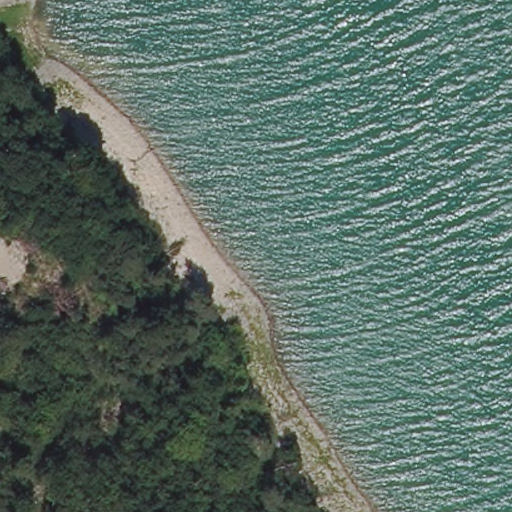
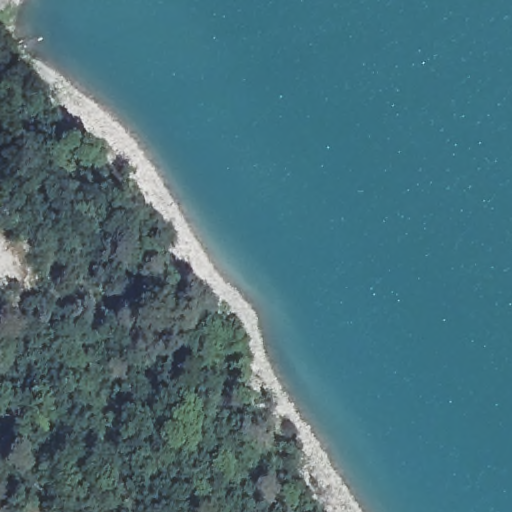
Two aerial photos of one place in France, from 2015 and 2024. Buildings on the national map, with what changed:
[]

